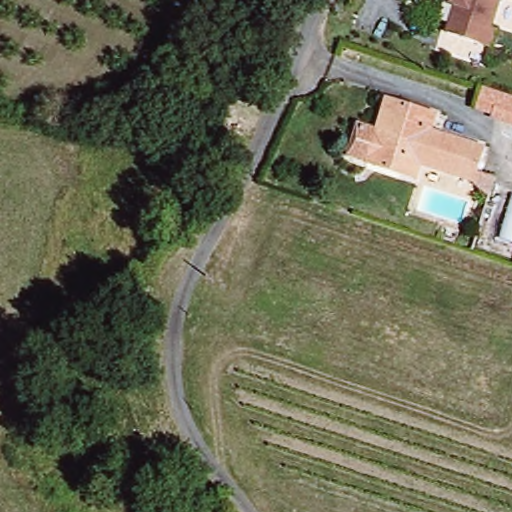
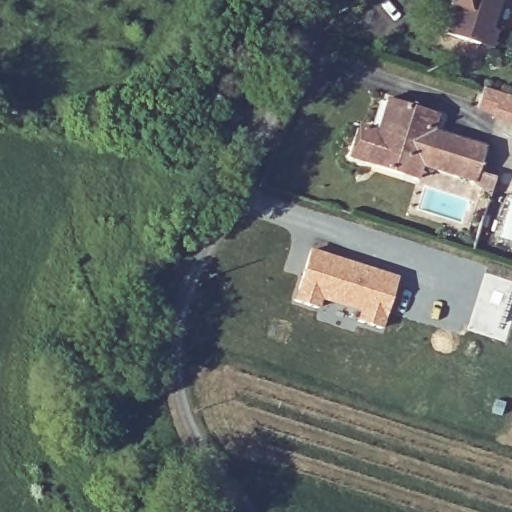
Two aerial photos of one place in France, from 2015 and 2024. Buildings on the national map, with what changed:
unchanged [(451,3),(447,1),(447,0),(496,0),(486,27),(491,30),(486,45),(474,41),(444,30),(451,3)]
unchanged [(474,114),(482,88),(512,97),(512,126),(474,114)]
unchanged [(467,181),(408,162),(404,169),(378,160),(391,119),(378,114),(385,98),(437,112),(434,124),(482,141),(467,181)]
unchanged [(417,181),(345,157),(357,122),(374,128),(378,114),(391,119),(378,160),(404,169),(408,162),(421,166),(417,181)]
new [(310,246),(399,275),(383,329),(355,319),(356,314),(322,302),(319,309),(291,299),(310,246)]

